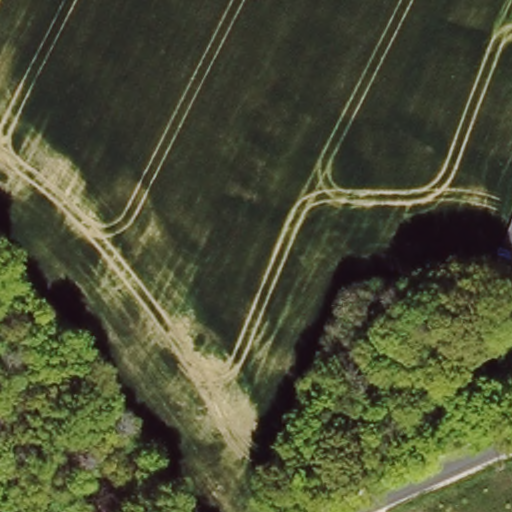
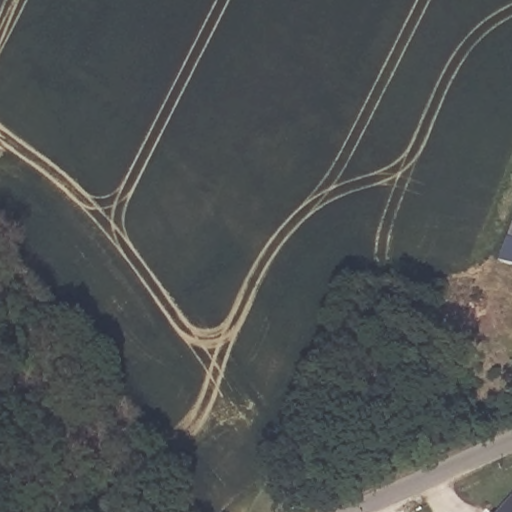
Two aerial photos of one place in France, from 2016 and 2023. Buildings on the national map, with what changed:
unchanged [(498,260),(512,223),(512,264),(498,260)]
new [(498,512),(512,495),(512,512),(498,512)]

